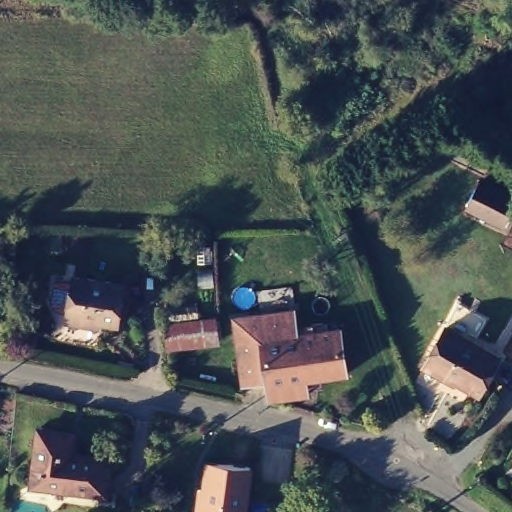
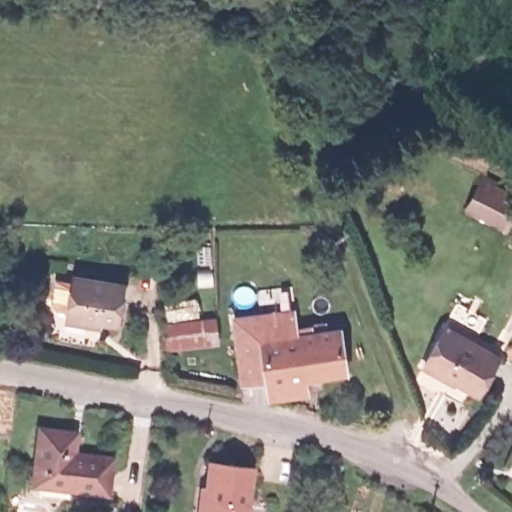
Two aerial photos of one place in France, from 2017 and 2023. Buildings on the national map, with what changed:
unchanged [(498,225),(463,207),(478,179),(512,197),(512,198),(498,225)]
unchanged [(210,262),(199,263),(198,247),(210,246),(210,262)]
unchanged [(62,311),(63,306),(69,265),(120,273),(113,315),(95,311),(95,316),(62,311)]
unchanged [(268,381),(268,377),(243,381),(235,313),(295,305),(298,323),(312,321),(312,320),(322,318),(323,320),(326,320),(327,326),(340,324),(346,368),(321,372),(322,378),(309,380),(309,388),(270,395),(268,381)]
unchanged [(218,340),(168,346),(166,326),(215,320),(218,340)]
unchanged [(480,389),(425,358),(445,321),(500,352),(480,389)]
unchanged [(105,483),(33,475),(40,420),(73,424),(71,445),(110,449),(105,483)]
unchanged [(200,484),(205,485),(208,457),(250,462),(244,512),(197,512),(200,484)]

